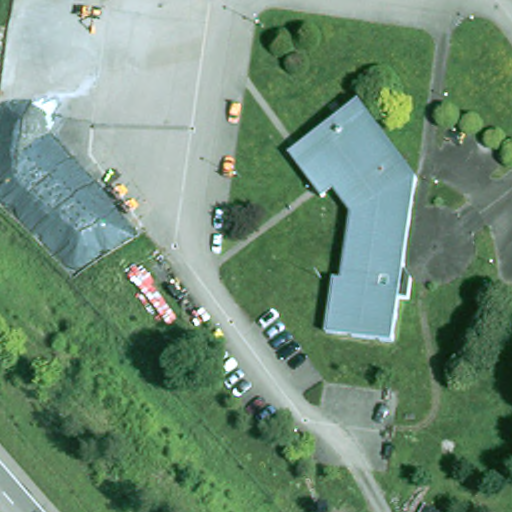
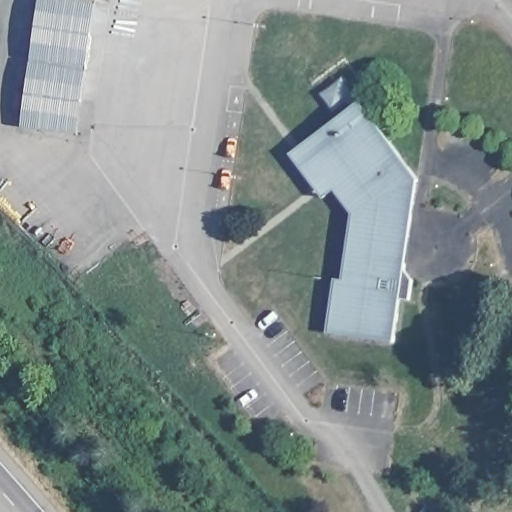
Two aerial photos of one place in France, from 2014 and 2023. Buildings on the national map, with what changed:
new [(76,134),(21,126),(40,0),(74,0),(95,3),(76,134)]
unchanged [(419,186),(413,283),(420,295),(413,313),(403,310),(390,354),(329,334),(345,283),(355,215),(338,190),(323,200),(291,156),(302,147),(363,103),(419,186)]

